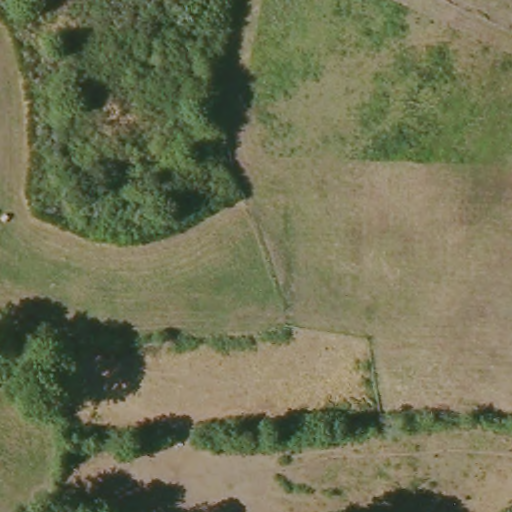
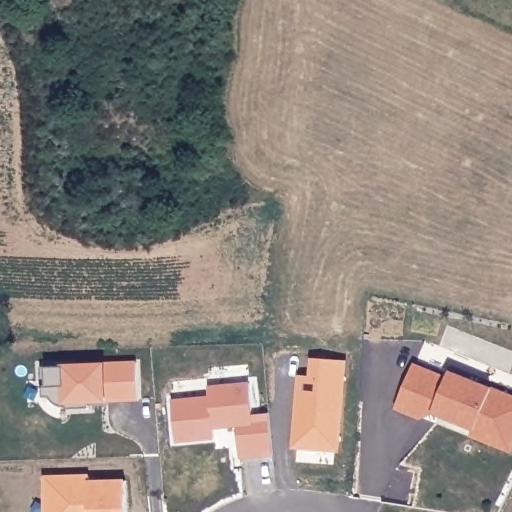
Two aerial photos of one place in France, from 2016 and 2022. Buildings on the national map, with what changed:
new [(344,360),(339,450),(294,447),(299,375),(311,376),(313,358),(344,360)]
new [(104,363),(136,361),(138,401),(108,403),(64,405),(56,404),(48,396),(44,397),(43,388),(46,387),(46,369),(63,367),(63,365),(104,363)]
new [(449,379),(452,372),(512,399),(512,454),(493,448),(434,416),(422,420),(398,409),(415,365),(449,379)]
new [(239,458),(236,427),(213,428),(213,440),(176,443),(171,401),(208,395),(208,388),(248,383),(253,415),(267,415),(271,456),(239,458)]
new [(50,499),(46,499),(45,478),(89,477),(90,483),(126,482),(127,512),(50,512),(50,499)]

